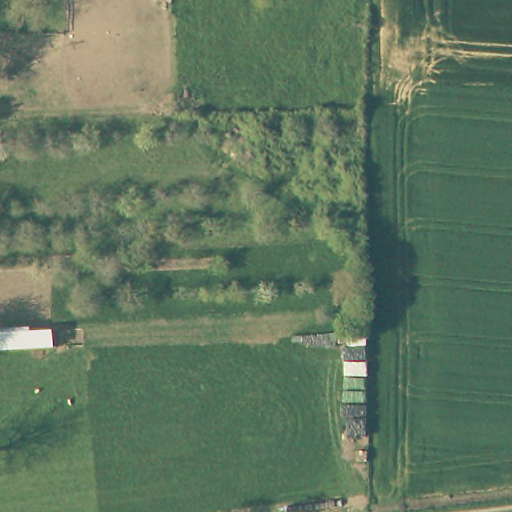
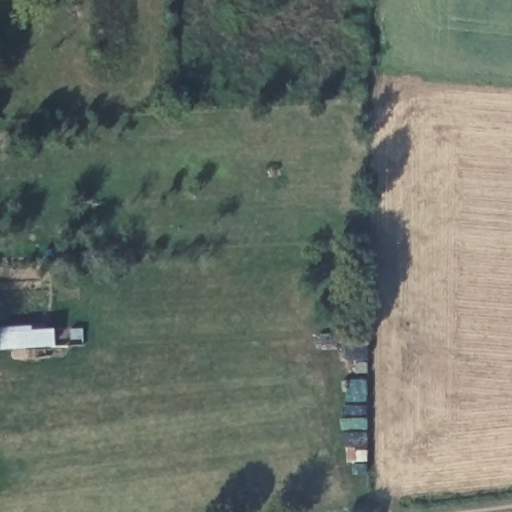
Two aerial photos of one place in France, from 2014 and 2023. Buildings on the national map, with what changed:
unchanged [(46,350),(0,352),(0,338),(46,336),(46,350)]

